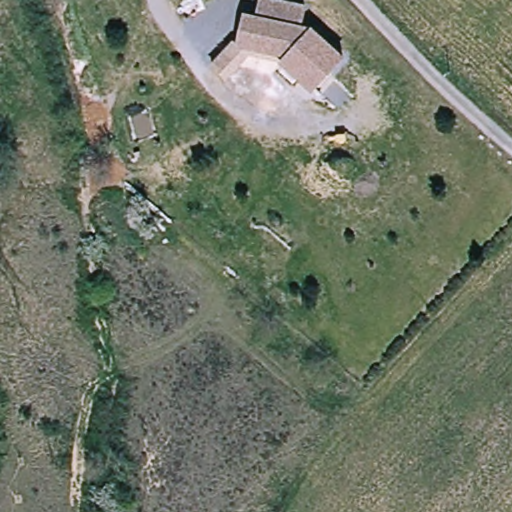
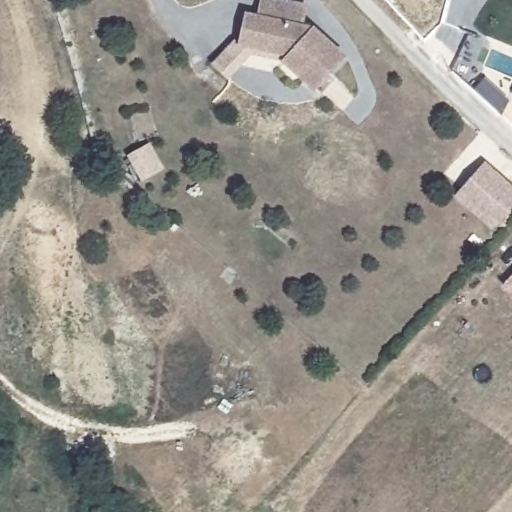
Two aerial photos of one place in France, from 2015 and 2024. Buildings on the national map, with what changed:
unchanged [(265,0),(281,0),(308,6),(305,28),(314,29),(346,58),(317,89),(287,61),(291,54),(242,44),(248,15),(260,17),(265,0)]
new [(512,186),(512,208),(492,232),(452,197),(485,162),(512,186)]

